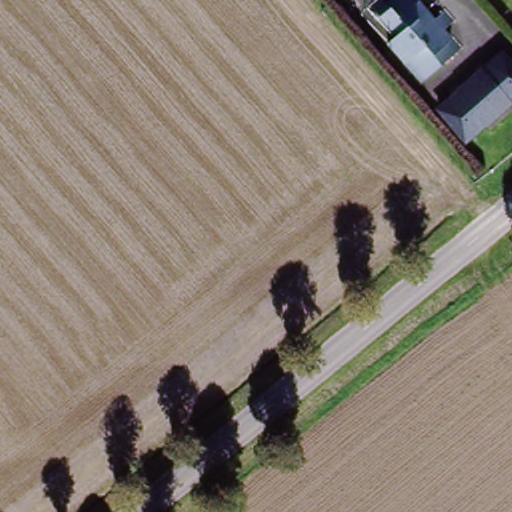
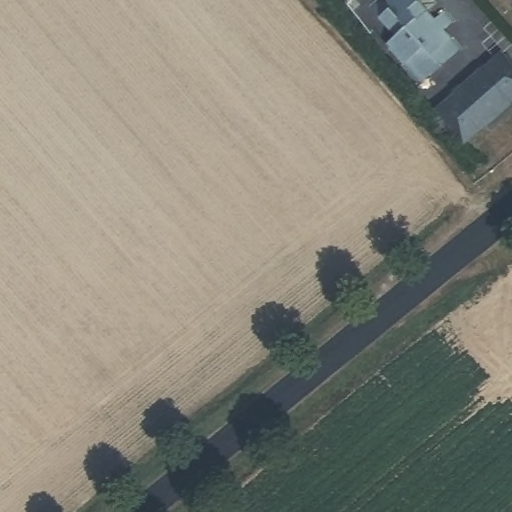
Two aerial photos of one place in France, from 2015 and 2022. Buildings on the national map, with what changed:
unchanged [(446,31),(438,39),(454,57),(415,92),(382,55),(392,46),(366,18),(376,9),(380,13),(388,5),(385,1),(386,0),(402,0),(429,29),(437,22),(446,31)]
unchanged [(506,49),(512,57),(512,107),(470,142),(440,106),(506,49)]

